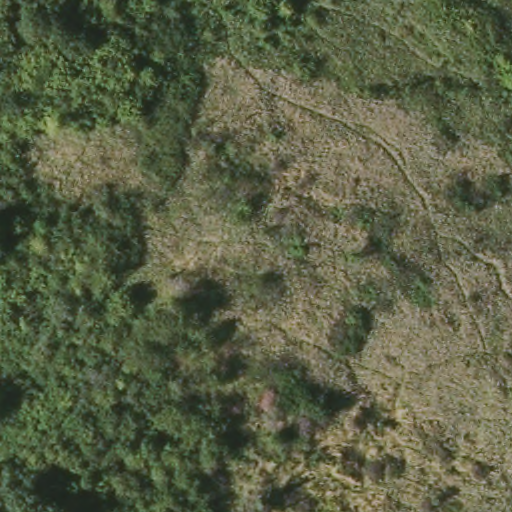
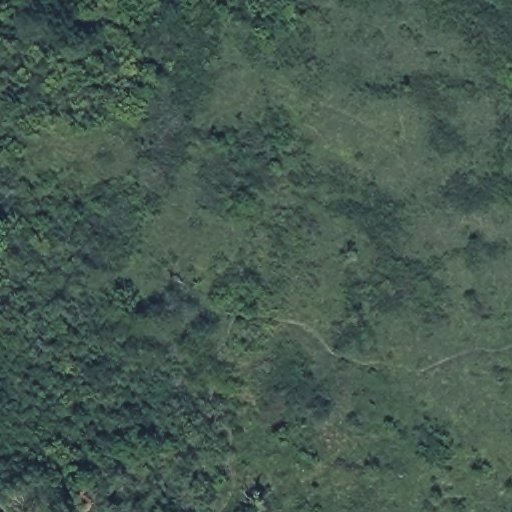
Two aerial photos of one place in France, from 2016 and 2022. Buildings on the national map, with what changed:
unchanged [(100,492),(86,512),(84,512),(68,501),(81,481),(100,492)]

